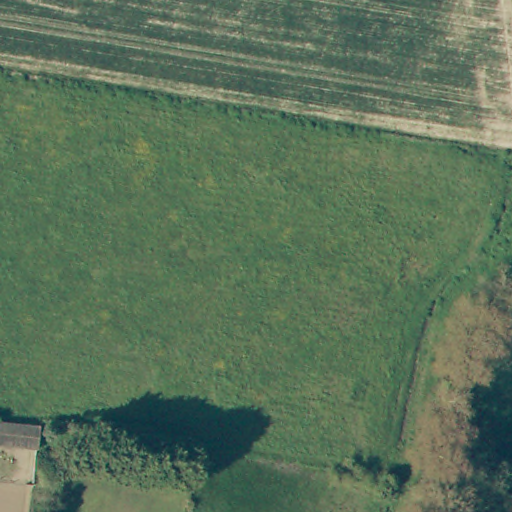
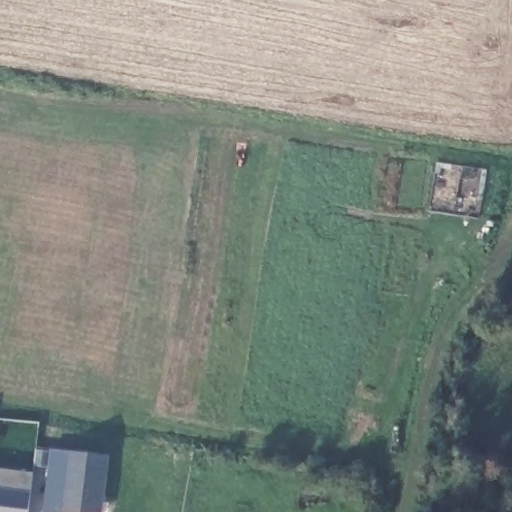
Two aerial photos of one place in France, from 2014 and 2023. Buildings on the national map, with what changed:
demolished [(0,446),(0,424),(34,428),(30,451),(0,446)]
new [(70,512),(61,511),(61,512),(42,512),(50,449),(106,456),(99,512),(70,512)]
new [(31,473),(27,512),(0,512),(0,468),(31,473)]

